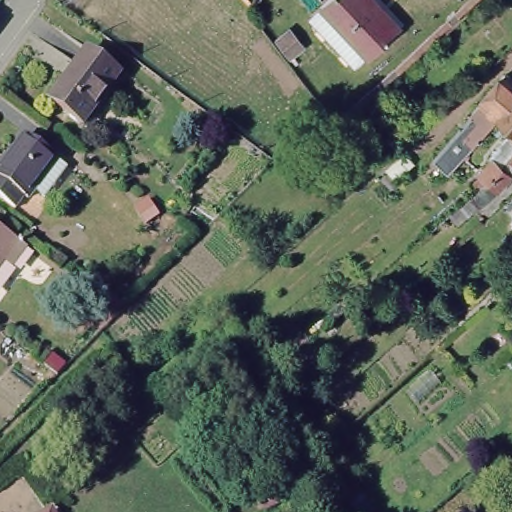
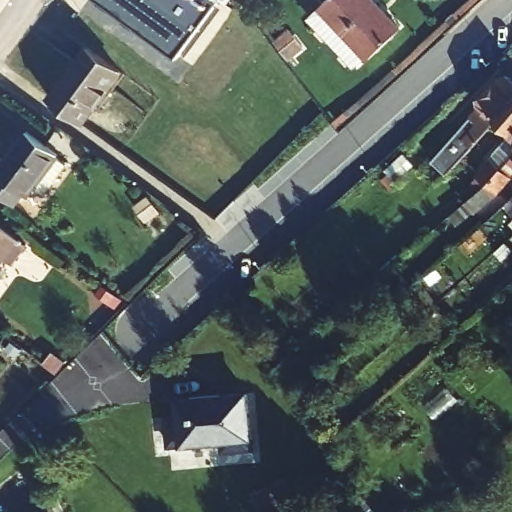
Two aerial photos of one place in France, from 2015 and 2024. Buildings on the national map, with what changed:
new [(108,0),(220,0),(182,52),(108,0)]
unchanged [(356,71),(309,17),(329,0),(379,0),(403,27),(356,71)]
unchanged [(91,46),(124,70),(85,121),(52,97),(91,46)]
unchanged [(500,76),(512,86),(512,104),(504,113),(451,174),(434,160),(477,102),(500,76)]
unchanged [(507,116),(504,113),(512,104),(512,120),(507,116)]
unchanged [(60,152),(58,154),(66,162),(45,192),(35,185),(28,194),(24,190),(17,201),(0,188),(0,167),(29,129),(60,152)]
unchanged [(497,154),(512,136),(512,177),(504,186),(477,209),(470,200),(494,177),(487,171),(499,156),(497,154)]
unchanged [(403,152),(414,165),(396,181),(385,168),(403,152)]
unchanged [(0,274),(0,222),(26,240),(0,274)]
new [(167,448),(164,417),(176,416),(177,397),(249,391),(252,451),(225,454),(224,443),(167,448)]
unchanged [(50,505),(54,512),(36,512),(50,505)]

